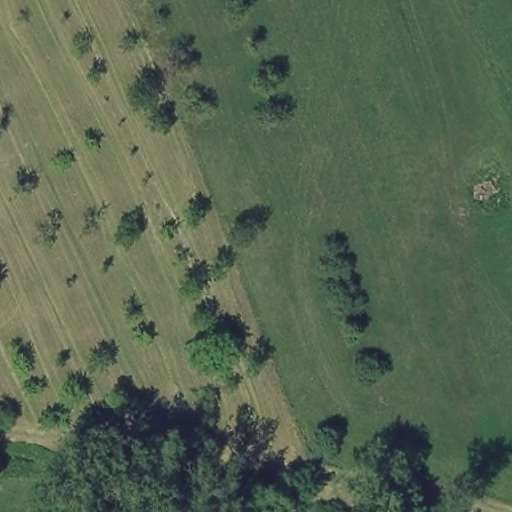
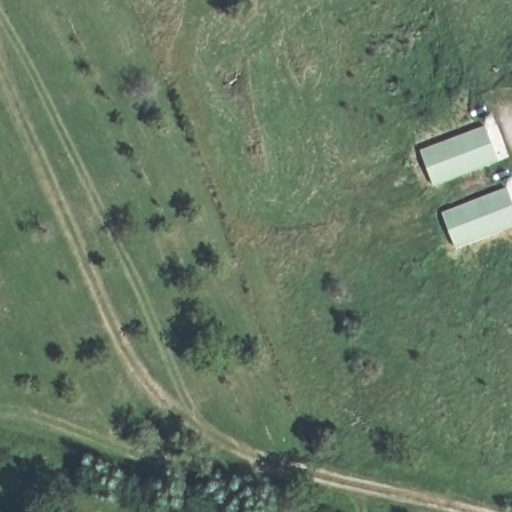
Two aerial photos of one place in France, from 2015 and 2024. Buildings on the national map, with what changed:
new [(435,185),(420,150),(485,126),(499,162),(435,185)]
new [(443,213),(507,188),(512,199),(512,226),(457,246),(443,213)]

